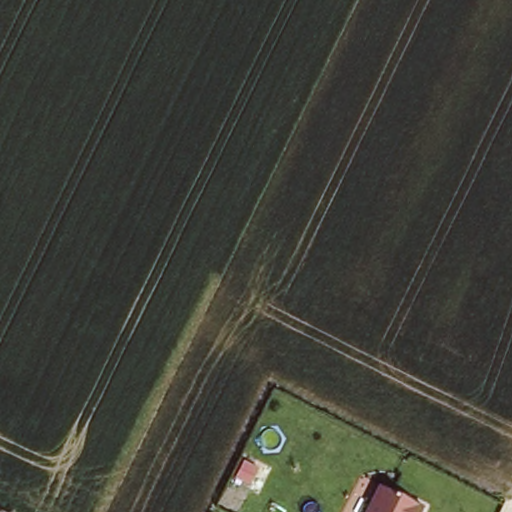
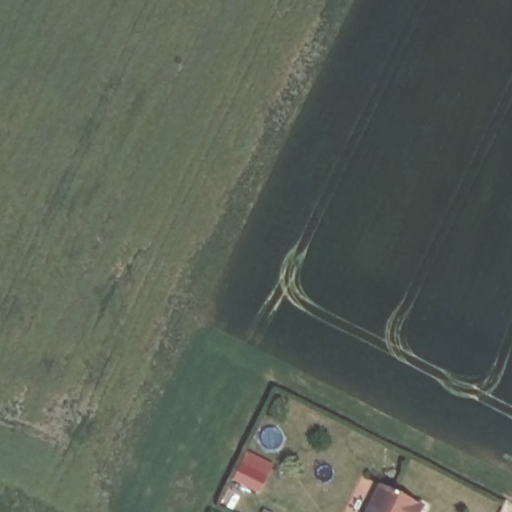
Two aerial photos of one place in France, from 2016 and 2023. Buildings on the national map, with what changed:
unchanged [(418,502),(413,512),(364,512),(378,483),(418,502)]

